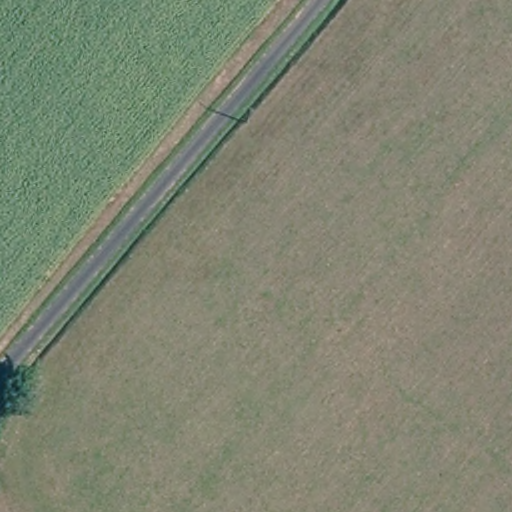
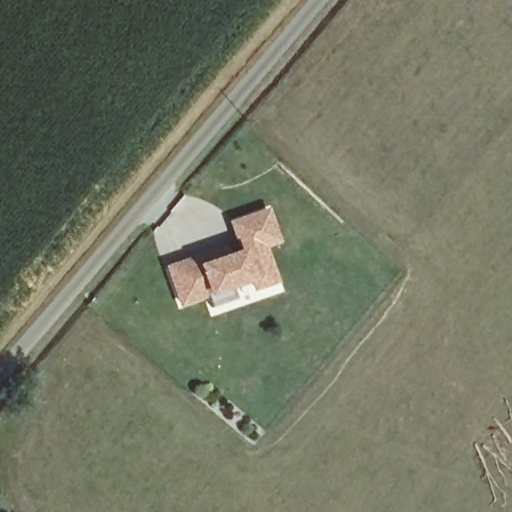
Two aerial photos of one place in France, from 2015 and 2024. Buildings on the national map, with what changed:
new [(283,242),(268,247),(279,281),(255,290),(252,283),(234,290),(238,299),(211,307),(208,298),(181,307),(167,266),(227,245),(231,254),(240,250),(230,220),(269,207),(283,242)]

